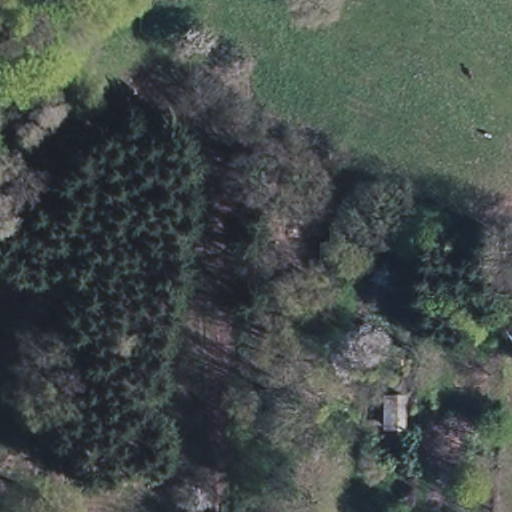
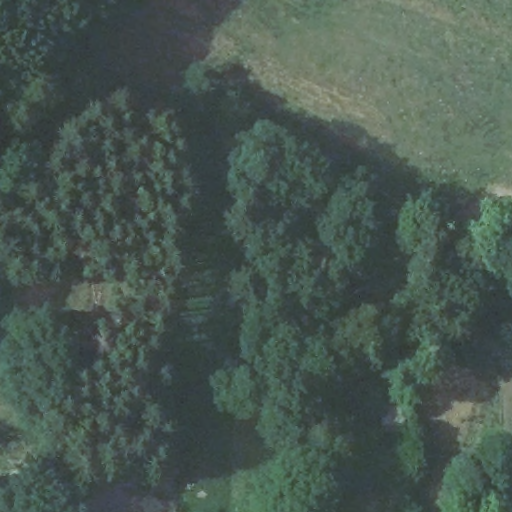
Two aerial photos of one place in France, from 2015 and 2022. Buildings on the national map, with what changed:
unchanged [(407,441),(383,441),(382,422),(382,400),(405,400),(407,441)]

